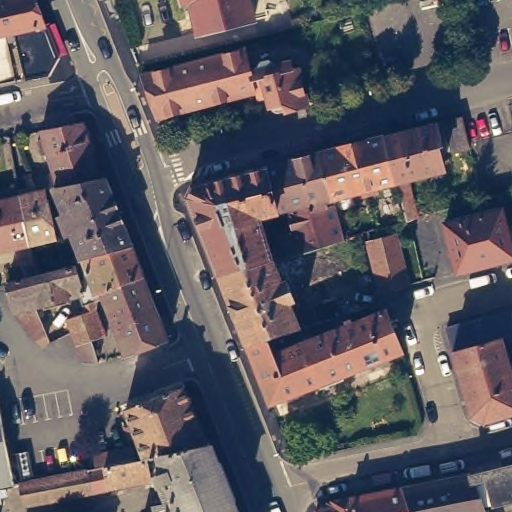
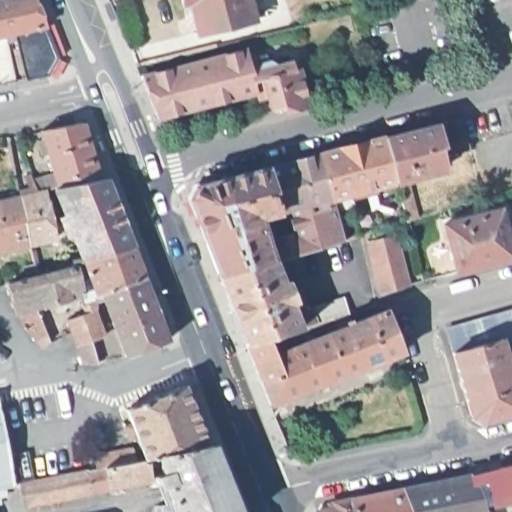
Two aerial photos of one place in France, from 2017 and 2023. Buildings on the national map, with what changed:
unchanged [(58,53),(49,70),(26,74),(15,28),(4,30),(14,77),(0,80),(0,0),(38,0),(46,21),(58,53)]
unchanged [(193,6),(186,7),(184,0),(251,0),(255,15),(199,29),(193,6)]
unchanged [(245,48),(251,70),(291,60),(294,69),(299,68),(308,105),(291,110),(286,111),(284,104),(271,107),(266,86),(256,88),(256,92),(158,118),(141,75),(245,48)]
unchanged [(470,143),(453,148),(446,116),(462,112),(470,143)]
unchanged [(442,142),(439,143),(444,164),(403,175),(404,179),(408,179),(417,214),(409,216),(407,217),(396,177),(385,131),(437,118),(442,142)]
unchanged [(41,130),(84,122),(100,178),(58,186),(41,130)]
unchanged [(368,184),(369,189),(363,190),(361,186),(334,193),(321,148),(385,131),(396,177),(368,184)]
unchanged [(274,257),(219,270),(188,192),(194,180),(321,148),(334,193),(345,236),(274,257)]
unchanged [(30,168),(35,166),(38,174),(33,176),(30,168)]
unchanged [(73,234),(68,236),(61,216),(65,214),(55,187),(58,186),(100,178),(105,177),(132,244),(80,257),(73,234)]
unchanged [(20,197),(38,191),(45,190),(56,238),(30,244),(20,197)]
unchanged [(30,244),(0,251),(0,201),(20,197),(30,244)]
unchanged [(457,267),(446,218),(502,205),(512,247),(512,253),(457,267)]
unchanged [(386,287),(374,238),(400,231),(413,280),(386,287)]
unchanged [(148,287),(103,297),(98,299),(80,257),(132,244),(148,287)]
unchanged [(274,257),(283,279),(288,276),(295,294),(289,297),(296,312),(304,309),(307,304),(313,302),(344,294),(349,309),(319,318),(303,322),(300,323),(268,333),(246,339),(219,270),(274,257)]
unchanged [(16,309),(12,298),(8,283),(38,275),(74,265),(81,295),(49,303),(42,305),(54,336),(38,345),(24,327),(18,311),(16,309)]
unchanged [(148,287),(169,340),(126,356),(115,327),(109,328),(106,319),(111,317),(103,297),(148,287)]
unchanged [(83,363),(77,344),(72,332),(68,319),(85,313),(98,299),(97,309),(107,334),(92,339),(99,363),(83,363)]
unchanged [(403,347),(402,347),(270,399),(246,339),(268,333),(300,323),(303,322),(306,332),(311,330),(313,333),(338,323),(336,320),(351,314),(353,317),(387,304),(403,347)]
unchanged [(488,422),(477,415),(475,411),(458,352),(452,329),(512,311),(512,343),(509,344),(512,356),(512,415),(488,422)]
unchanged [(165,461),(151,465),(146,458),(126,408),(184,385),(208,443),(165,461)]
unchanged [(5,488),(0,489),(0,405),(16,486),(5,488)]
unchanged [(156,505),(176,509),(170,492),(156,495),(153,480),(151,465),(165,461),(208,443),(209,442),(223,473),(231,492),(238,512),(156,512),(156,505)]
unchanged [(20,485),(88,469),(96,468),(94,455),(133,448),(136,460),(146,458),(151,465),(153,480),(101,490),(25,505),(20,485)]
unchanged [(471,479),(480,477),(512,469),(512,512),(482,512),(471,479)]
unchanged [(471,479),(482,512),(408,512),(403,495),(403,493),(471,479)]
unchanged [(7,494),(0,495),(0,489),(5,488),(7,494)]
unchanged [(329,507),(403,493),(403,495),(408,512),(330,512),(329,507)]
unchanged [(0,502),(0,495),(1,501),(0,502)]

